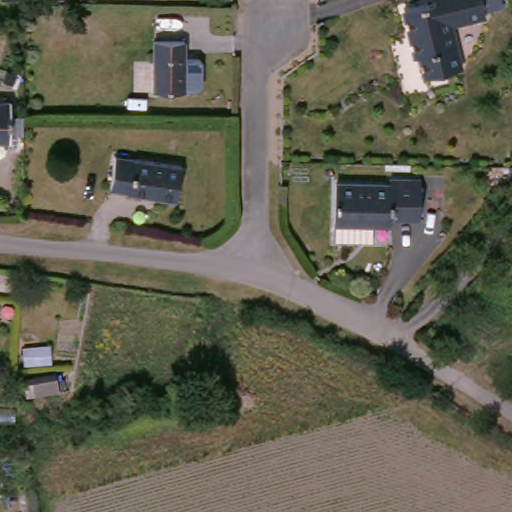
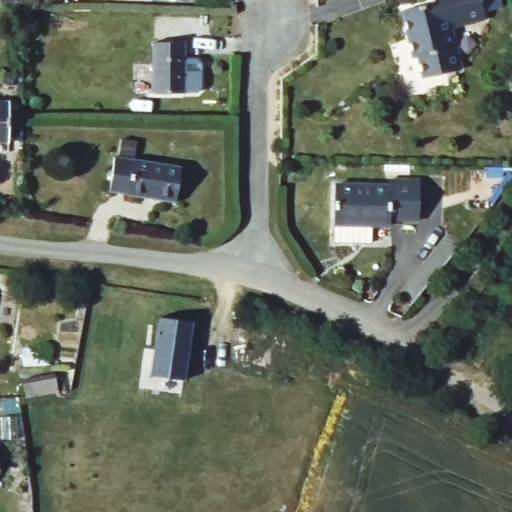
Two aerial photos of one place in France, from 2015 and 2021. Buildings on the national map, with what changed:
unchanged [(423,0),(487,0),(489,7),(473,12),(475,19),(441,29),(448,53),(454,73),(419,83),(412,61),(408,62),(406,55),(394,14),(424,5),(423,0)]
unchanged [(153,50),(183,51),(179,100),(149,98),(153,50)]
unchanged [(3,152),(0,152),(0,117),(6,117),(3,152)]
unchanged [(111,165),(179,171),(175,208),(106,202),(111,165)]
unchanged [(331,248),(331,231),(331,193),(384,195),(384,186),(411,187),(411,224),(386,223),(386,232),(369,231),(369,249),(331,248)]
new [(159,315),(194,321),(186,379),(151,373),(159,315)]
unchanged [(31,378),(63,371),(67,389),(34,397),(31,378)]

